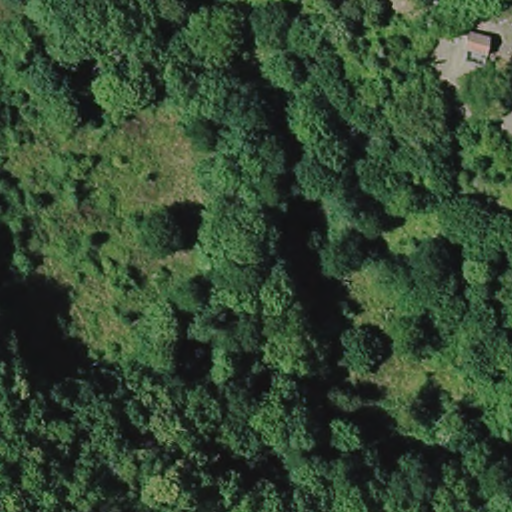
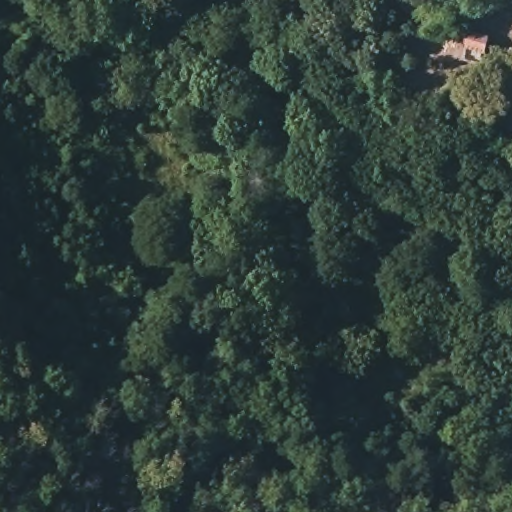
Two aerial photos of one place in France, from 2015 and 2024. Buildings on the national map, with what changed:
unchanged [(471,47),(472,43),(492,48),(491,57),(489,66),(468,60),(471,47)]

